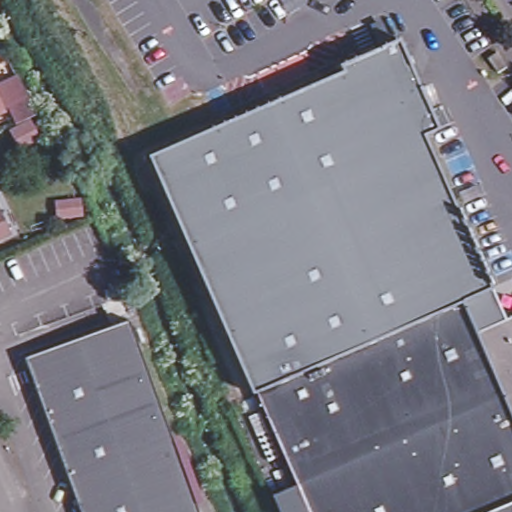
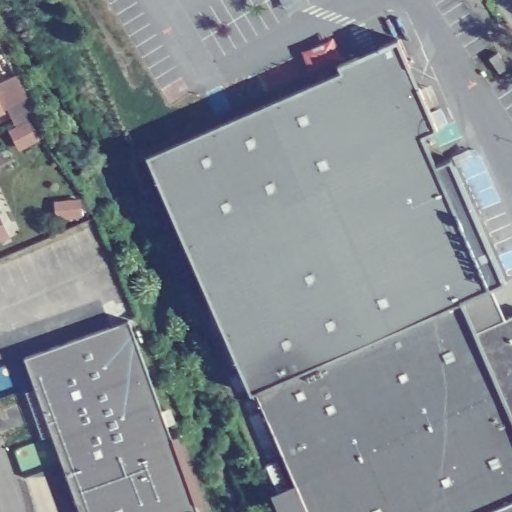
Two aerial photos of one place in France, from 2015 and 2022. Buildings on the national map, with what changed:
unchanged [(456,298),(251,387),(149,159),(342,72),(340,68),(398,41),(436,129),(422,135),(490,287),(504,320),(512,318),(512,419),(509,420),(456,298)]
unchanged [(494,66),(489,59),(497,53),(501,58),(500,59),(501,61),(506,68),(499,73),(494,66)]
unchanged [(0,240),(0,235),(2,239),(0,240)]
unchanged [(251,387),(456,298),(509,420),(512,427),(512,512),(280,512),(301,503),(251,387)]
unchanged [(129,325),(196,512),(77,512),(24,363),(129,325)]

